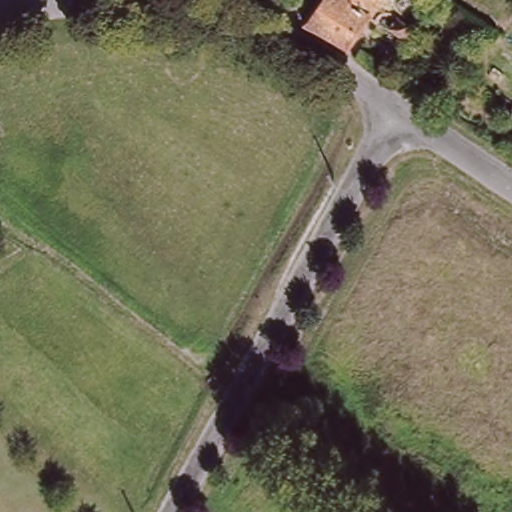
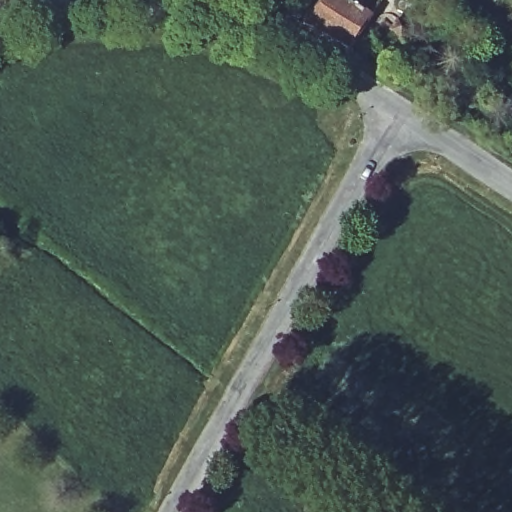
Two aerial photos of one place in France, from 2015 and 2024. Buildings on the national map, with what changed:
unchanged [(312,0),(375,0),(348,44),(299,20),(312,0)]
unchanged [(394,31),(400,20),(419,31),(412,41),(394,31)]

